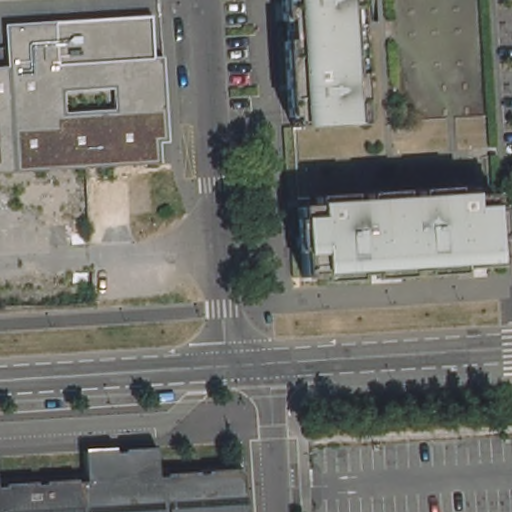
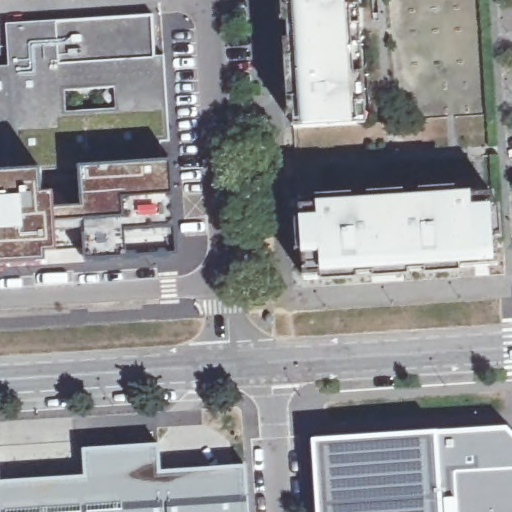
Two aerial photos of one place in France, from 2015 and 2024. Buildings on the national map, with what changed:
unchanged [(355,119),(290,123),(290,119),(289,98),(288,86),(287,78),(284,25),(283,14),(283,9),(282,0),(354,0),(354,3),(346,4),(348,21),(351,69),(359,69),(361,100),(354,100),(355,119)]
unchanged [(155,59),(165,59),(172,144),(161,146),(163,165),(0,176),(0,66),(9,66),(8,26),(155,18),(155,59)]
new [(178,255),(88,259),(86,231),(55,232),(53,209),(82,208),(79,171),(163,165),(172,164),(174,195),(178,255)]
new [(0,266),(0,176),(39,173),(41,196),(53,196),(55,232),(56,252),(44,252),(45,264),(0,266)]
unchanged [(493,261),(492,261),(485,261),(323,271),(317,272),(300,273),(299,270),(298,248),(298,245),(297,237),(296,216),(296,213),(295,204),(295,202),(298,201),(313,201),(312,193),(349,190),(350,198),(365,197),(365,188),(401,186),(401,195),(417,194),(416,186),(452,184),(452,192),(459,191),(489,190),(490,203),(490,205),(492,233),(493,252),(493,258),(493,261)]
new [(512,436),(512,512),(441,512),(436,434),(507,430),(512,436)]
new [(314,441),(436,434),(441,512),(318,512),(314,441)]
unchanged [(123,452),(127,452),(126,449),(158,447),(160,476),(169,476),(169,473),(200,471),(201,474),(209,473),(209,471),(241,468),(241,471),(243,471),(243,473),(246,473),(248,505),(245,505),(245,512),(127,512),(123,452)]
unchanged [(118,450),(118,452),(123,452),(127,512),(86,512),(84,481),(88,481),(86,451),(118,450)]
unchanged [(8,486),(7,483),(39,481),(39,484),(48,484),(47,481),(79,479),(79,481),(84,481),(86,512),(0,512),(0,486),(8,486)]

